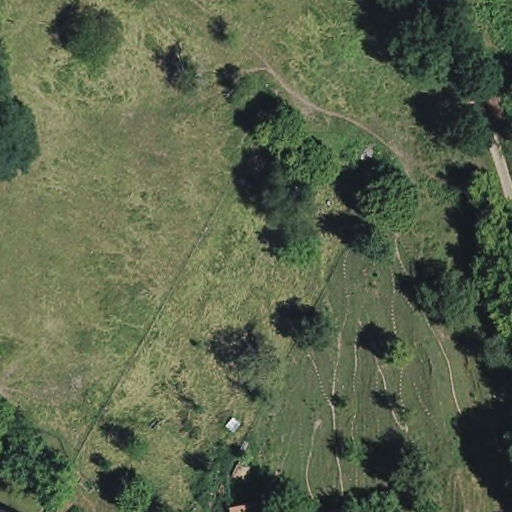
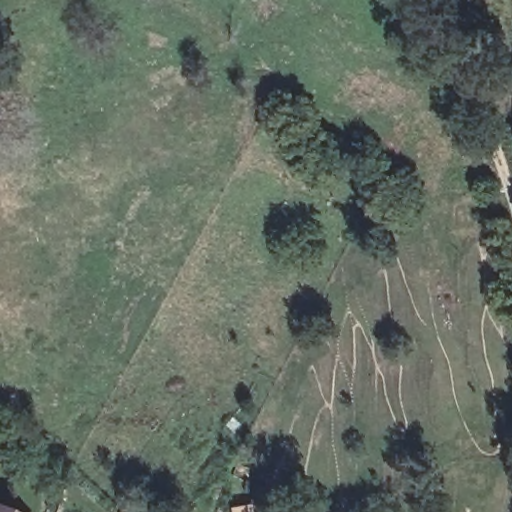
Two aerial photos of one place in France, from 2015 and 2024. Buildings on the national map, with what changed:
unchanged [(257,501),(260,512),(229,512),(227,507),(257,501)]

